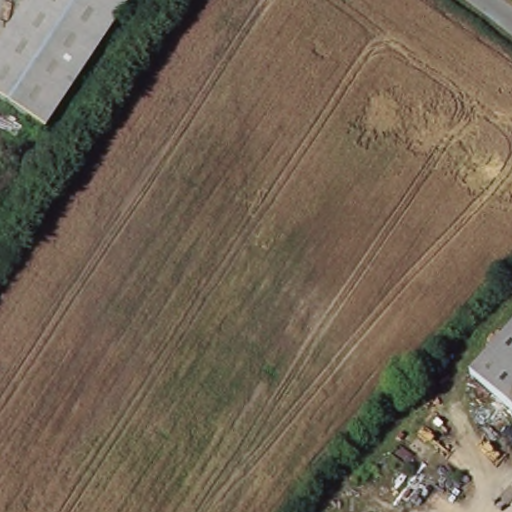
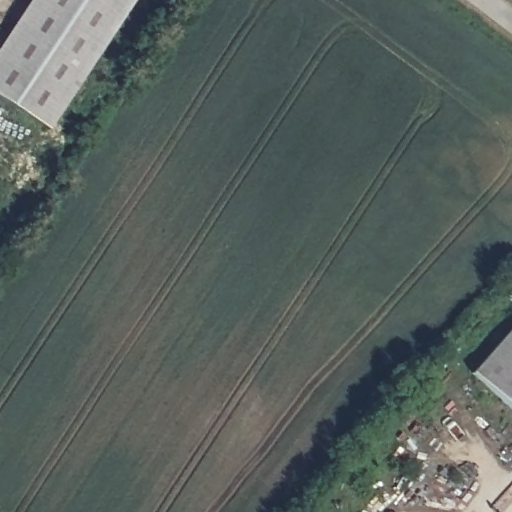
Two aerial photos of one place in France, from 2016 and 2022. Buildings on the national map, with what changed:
unchanged [(0,98),(0,46),(30,0),(133,0),(48,130),(0,98)]
unchanged [(470,373),(512,326),(512,410),(470,373)]

